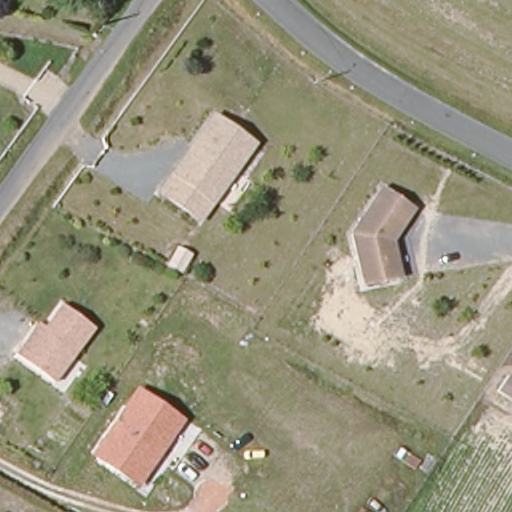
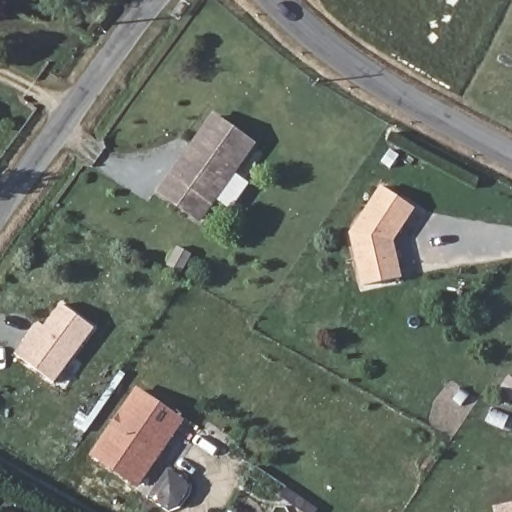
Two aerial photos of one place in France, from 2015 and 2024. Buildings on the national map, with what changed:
unchanged [(255,141),(211,223),(170,200),(180,180),(188,184),(203,155),(197,151),(213,119),(255,141)]
unchanged [(413,205),(392,237),(392,240),(393,247),(400,275),(363,282),(351,230),(382,185),(413,205)]
unchanged [(99,322),(57,378),(25,352),(39,333),(51,332),(72,302),(99,322)]
unchanged [(138,488),(91,457),(135,389),(183,422),(138,488)]
new [(495,507),(512,504),(512,512),(496,512),(495,507)]

